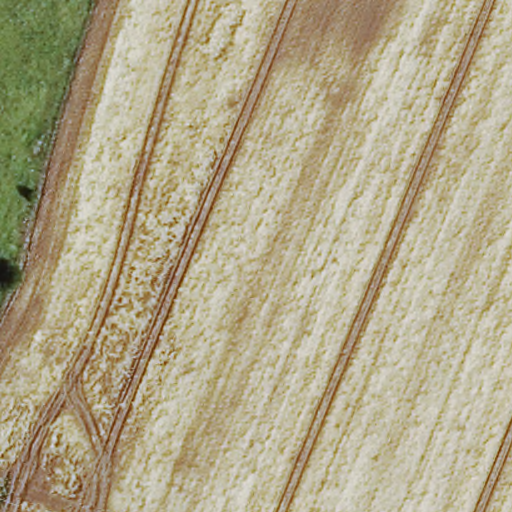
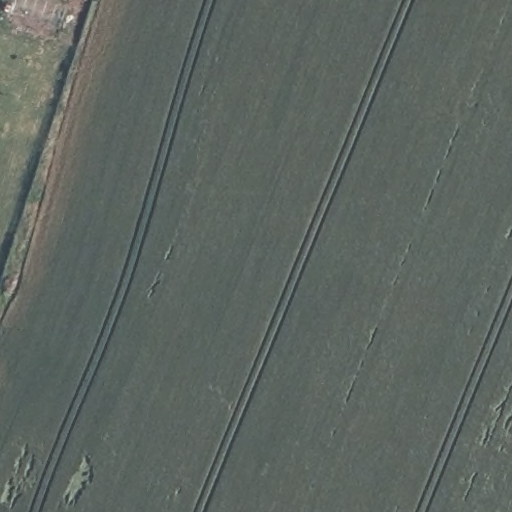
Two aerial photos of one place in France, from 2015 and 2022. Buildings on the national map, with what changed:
[]

